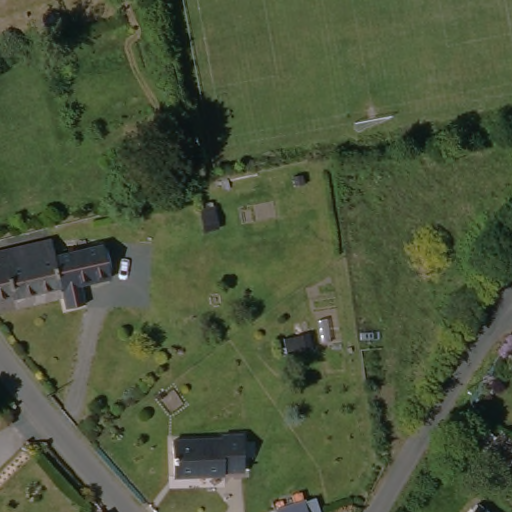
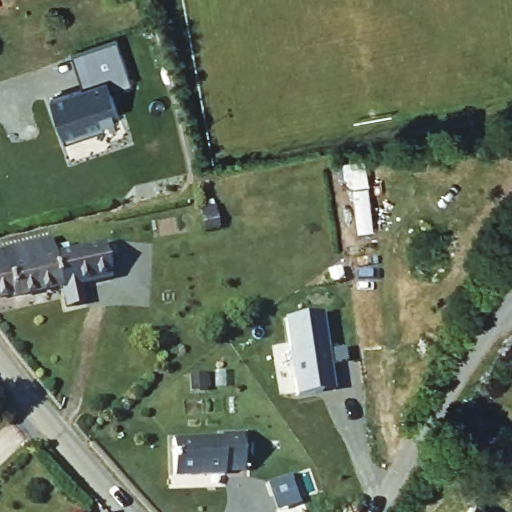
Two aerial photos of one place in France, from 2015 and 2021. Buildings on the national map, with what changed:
new [(63,135),(61,126),(56,110),(52,99),(94,85),(83,52),(117,41),(131,85),(111,92),(119,118),(101,123),(104,130),(66,142),(63,135)]
unchanged [(17,295),(15,295),(14,292),(0,296),(0,250),(51,237),(55,253),(107,241),(115,274),(63,287),(62,283),(59,285),(61,294),(62,297),(19,307),(19,303),(17,295)]
new [(287,317),(324,312),(330,349),(345,347),(347,360),(332,363),(336,390),(298,396),(287,317)]
unchanged [(223,436),(245,435),(247,471),(224,471),(224,475),(174,476),(173,441),(223,439),(223,436)]
unchanged [(488,447),(501,435),(512,444),(512,462),(509,465),(488,447)]
unchanged [(317,512),(282,512),(280,507),(311,496),(317,512)]
unchanged [(100,512),(96,512),(95,506),(100,512)]
unchanged [(485,512),(471,512),(478,506),(485,512)]

